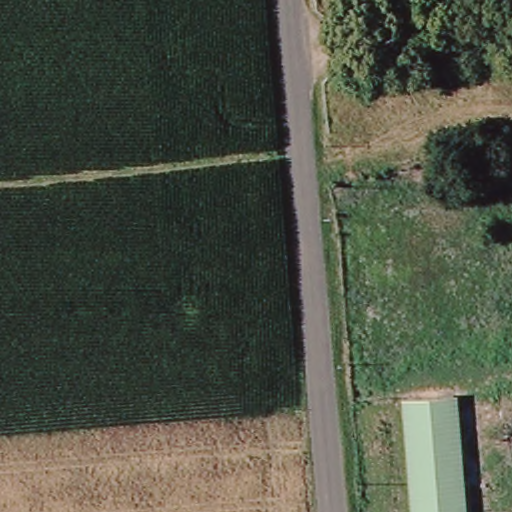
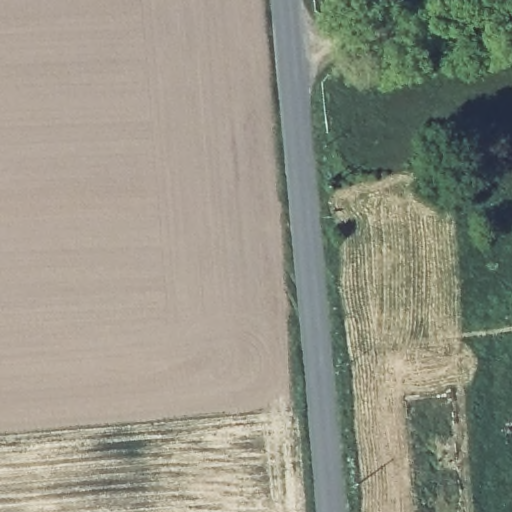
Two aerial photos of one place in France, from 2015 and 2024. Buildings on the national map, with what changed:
demolished [(414,399),(461,395),(466,464),(469,512),(424,512),(414,399)]

